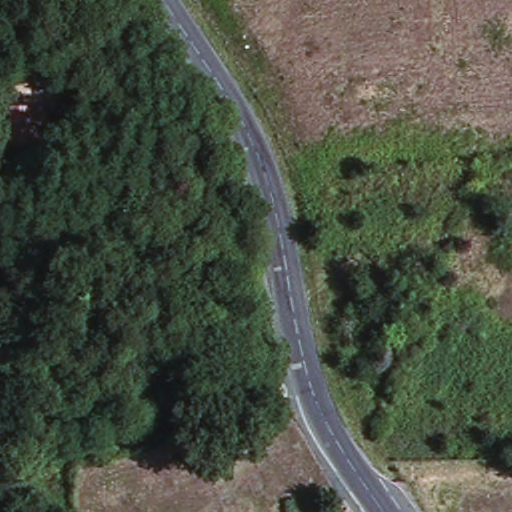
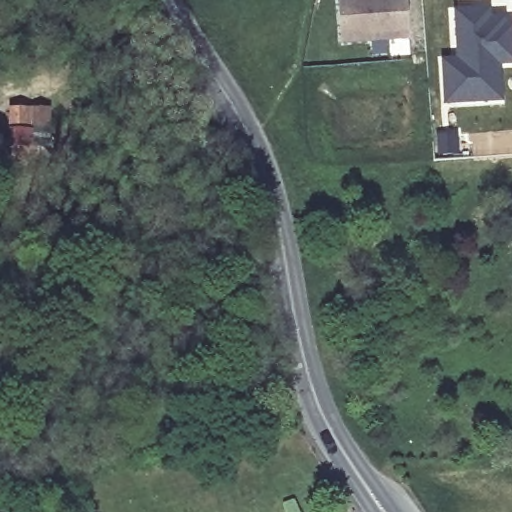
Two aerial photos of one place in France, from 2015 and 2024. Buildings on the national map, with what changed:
new [(339,46),(336,0),(406,0),(410,41),(339,46)]
new [(452,11),(483,9),(484,18),(498,17),(500,23),(508,23),(511,61),(493,62),(496,98),(441,101),(439,60),(455,59),(452,11)]
unchanged [(51,106),(52,123),(34,123),(35,143),(14,143),(14,106),(51,106)]

